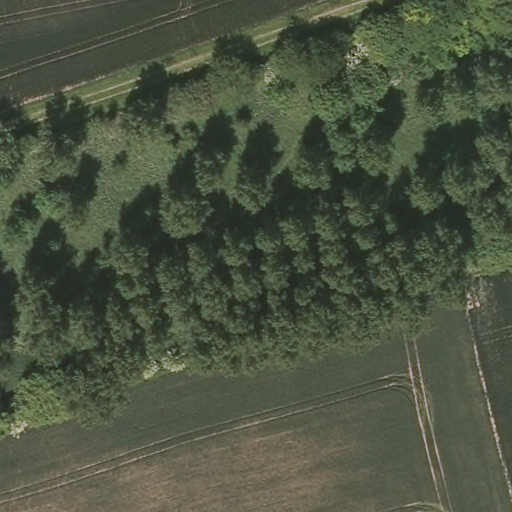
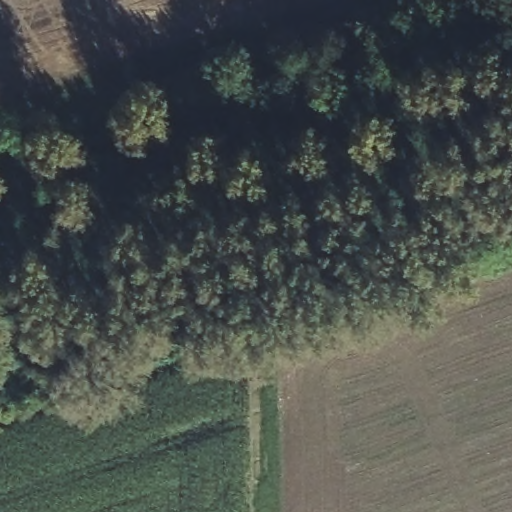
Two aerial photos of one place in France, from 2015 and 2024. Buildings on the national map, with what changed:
[]

